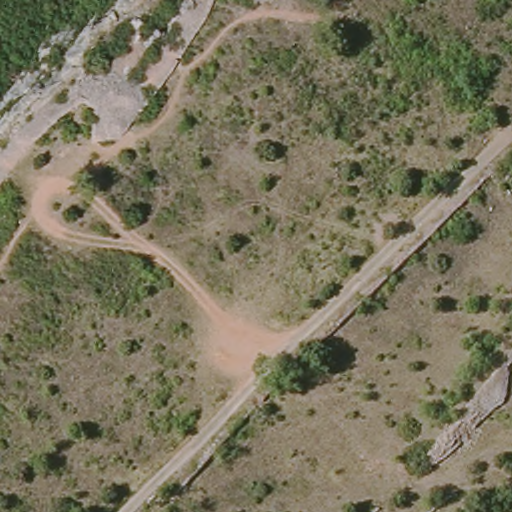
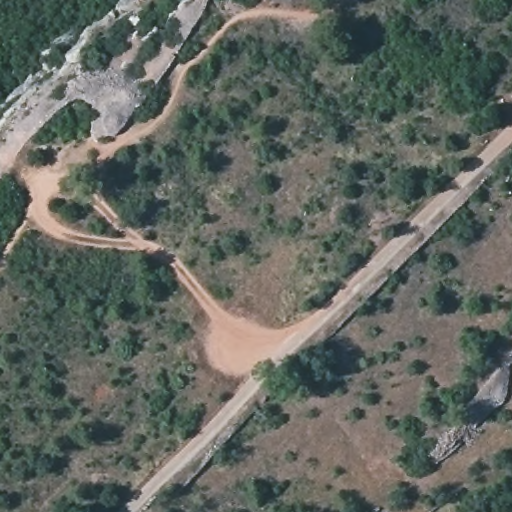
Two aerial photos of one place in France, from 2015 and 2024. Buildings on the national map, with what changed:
unchanged [(136,125),(131,132),(124,136),(117,138),(109,136),(103,132),(98,125),(96,117),(98,110),(103,103),(109,98),(117,97),(124,98),(131,103),(136,110),(138,117),(136,125)]

